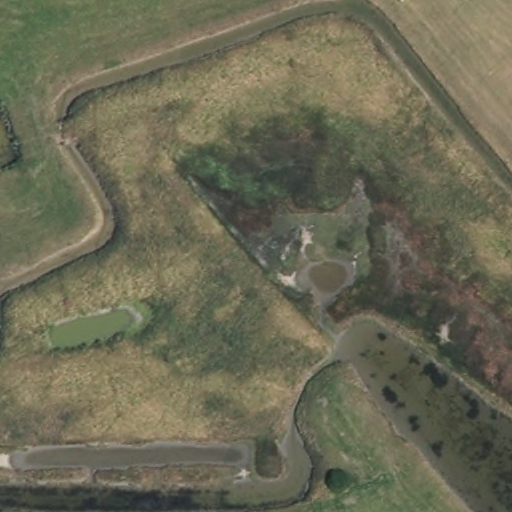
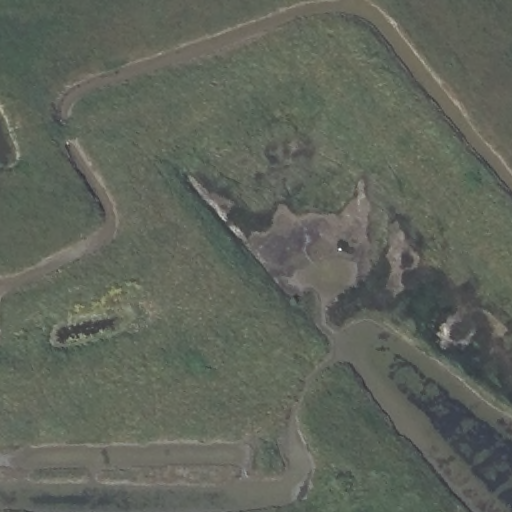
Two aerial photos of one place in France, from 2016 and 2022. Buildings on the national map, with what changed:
[]

